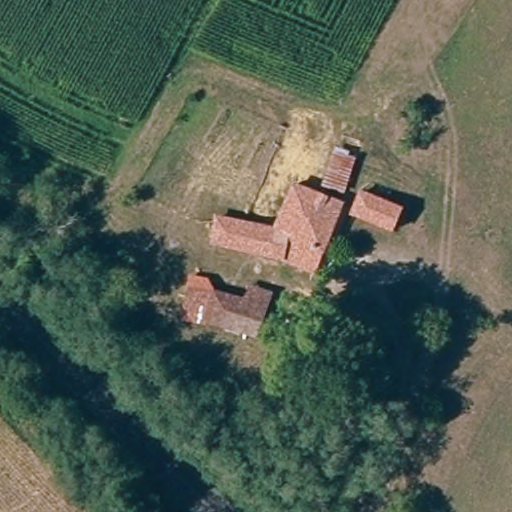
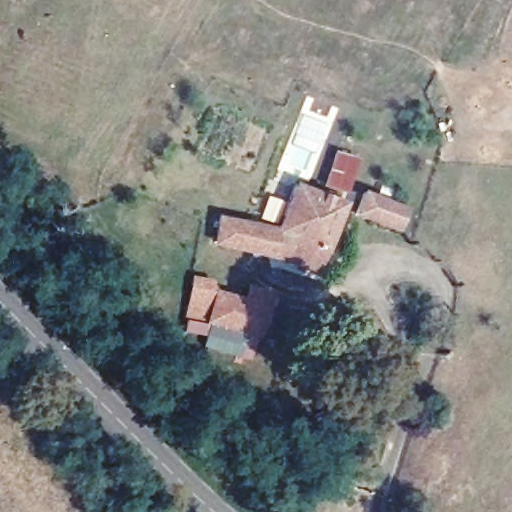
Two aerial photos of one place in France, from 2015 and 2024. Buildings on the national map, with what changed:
unchanged [(335,150),(355,158),(346,185),(344,191),(342,191),(323,184),(335,150)]
unchanged [(219,217),(275,229),(294,185),(319,195),(340,204),(313,270),(282,256),(276,255),(214,240),(219,217)]
unchanged [(353,217),(362,196),(402,213),(393,234),(353,217)]
unchanged [(211,327),(209,328),(188,324),(191,299),(195,280),(215,284),(221,295),(248,303),(255,288),(278,297),(273,310),(260,342),(211,327)]

